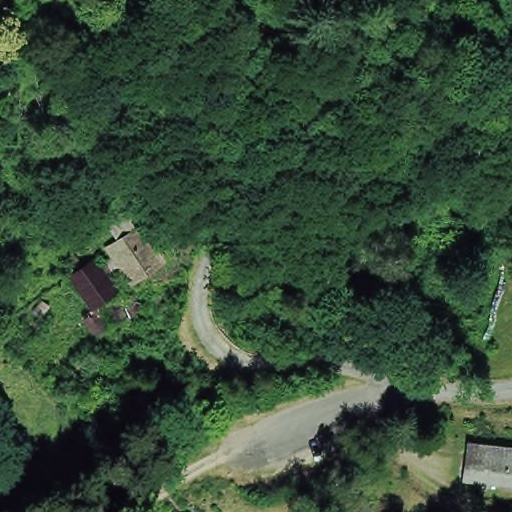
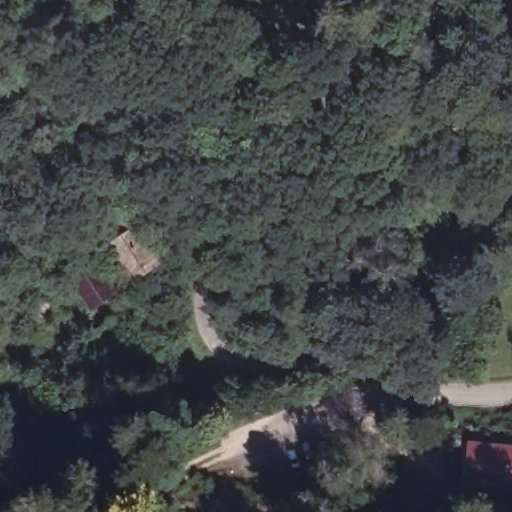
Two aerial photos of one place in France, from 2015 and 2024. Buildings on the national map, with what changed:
unchanged [(112,241),(122,234),(114,222),(135,207),(167,255),(137,277),(112,241)]
unchanged [(99,335),(84,314),(93,308),(70,275),(92,260),(115,292),(109,297),(124,318),(99,335)]
unchanged [(139,310),(127,318),(122,309),(132,300),(139,310)]
unchanged [(469,475),(472,444),(512,449),(512,480),(469,475)]

